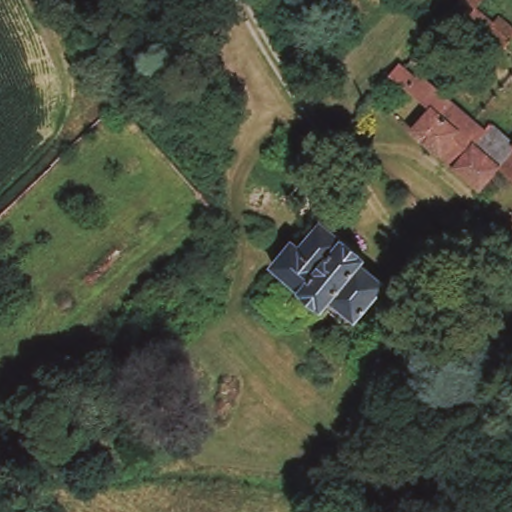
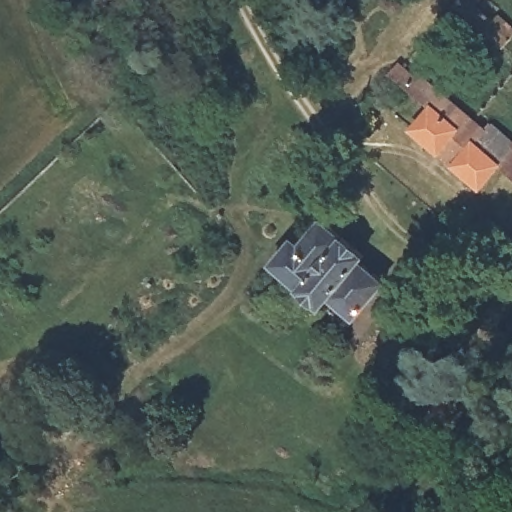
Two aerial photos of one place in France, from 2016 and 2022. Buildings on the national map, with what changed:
unchanged [(464,0),(485,0),(482,4),(497,17),(501,14),(512,23),(512,40),(505,49),(459,7),(461,4),(464,0)]
unchanged [(398,66),(401,62),(407,67),(483,133),(488,132),(509,150),(512,147),(512,178),(506,173),(489,192),(414,129),(431,108),(391,74),(398,66)]
unchanged [(302,237),(309,242),(333,216),(375,253),(371,260),(396,280),(397,281),(359,323),(309,283),(300,290),(297,287),(275,267),(280,258),(302,237)]
unchanged [(509,253),(496,268),(487,261),(499,246),(509,253)]
unchanged [(444,312),(458,322),(449,335),(435,323),(444,312)]

